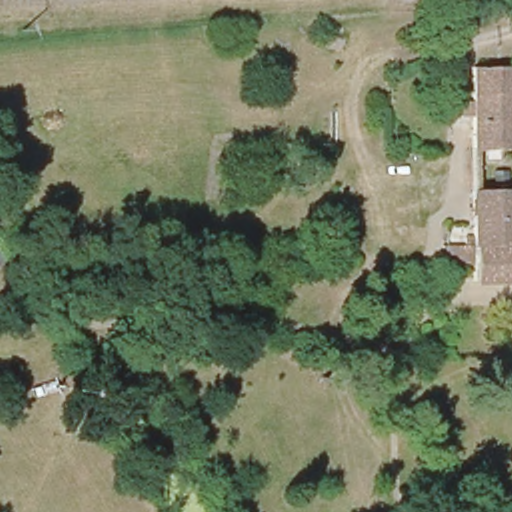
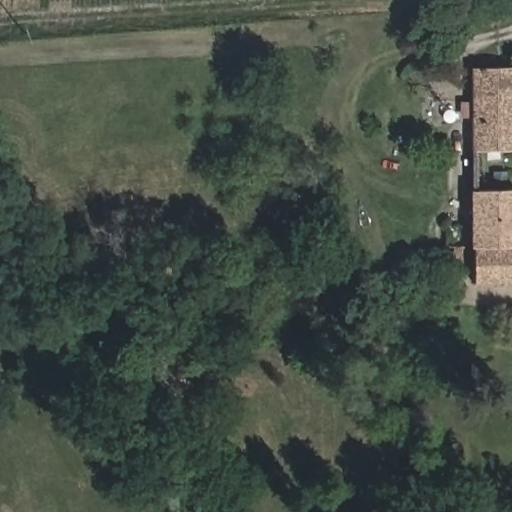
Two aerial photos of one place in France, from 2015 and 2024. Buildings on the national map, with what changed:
unchanged [(473,68),(512,67),(512,149),(473,150),(473,68)]
unchanged [(473,194),(512,194),(512,286),(473,287),(474,246),(473,243),(473,194)]

